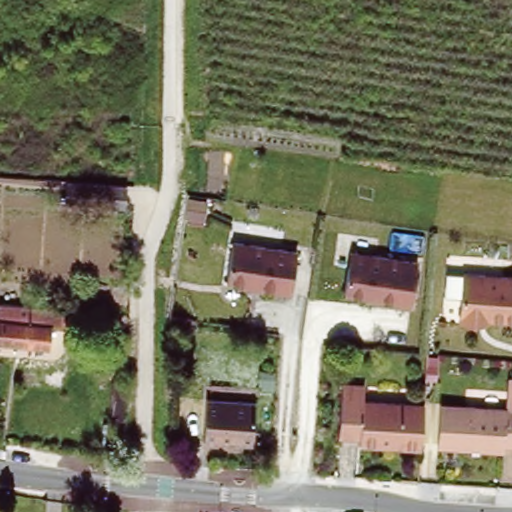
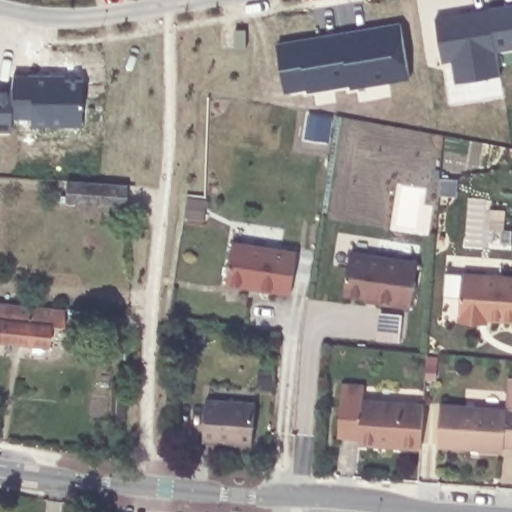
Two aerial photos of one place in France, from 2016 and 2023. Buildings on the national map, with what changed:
new [(512,49),(495,51),(488,9),(512,6),(512,49)]
new [(488,9),(495,51),(500,77),(455,84),(451,61),(442,63),(434,19),(488,9)]
new [(400,25),(408,79),(350,89),(349,85),(340,34),(400,25)]
new [(234,30),(245,30),(245,49),(234,49),(234,30)]
new [(340,34),(349,85),(306,93),(305,89),(284,93),(276,45),(340,34)]
new [(10,86),(12,74),(50,75),(63,75),(63,80),(80,80),(80,126),(28,125),(28,118),(10,118),(10,88),(10,86)]
new [(10,86),(10,88),(10,118),(9,130),(0,130),(0,86),(10,86)]
unchanged [(124,205),(65,200),(65,180),(125,185),(124,205)]
unchanged [(290,294),(225,284),(231,242),(295,251),(290,294)]
unchanged [(349,250),(415,261),(408,308),(342,293),(349,250)]
unchanged [(512,275),(512,322),(487,320),(486,324),(458,321),(462,272),(512,275)]
unchanged [(60,325),(50,324),(48,346),(28,344),(27,355),(15,354),(15,342),(0,340),(0,302),(62,308),(60,325)]
unchanged [(358,432),(339,432),(342,384),(342,379),(363,381),(362,385),(362,394),(423,399),(420,442),(358,438),(358,432)]
unchanged [(507,441),(442,436),(444,396),(512,400),(512,436),(507,436),(507,441)]
unchanged [(250,446),(202,441),(205,398),(254,403),(250,446)]

